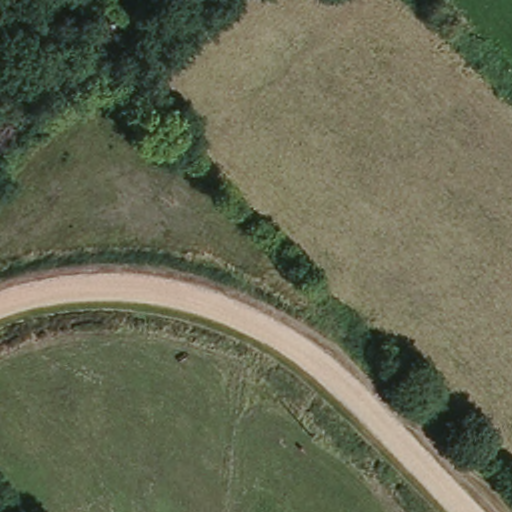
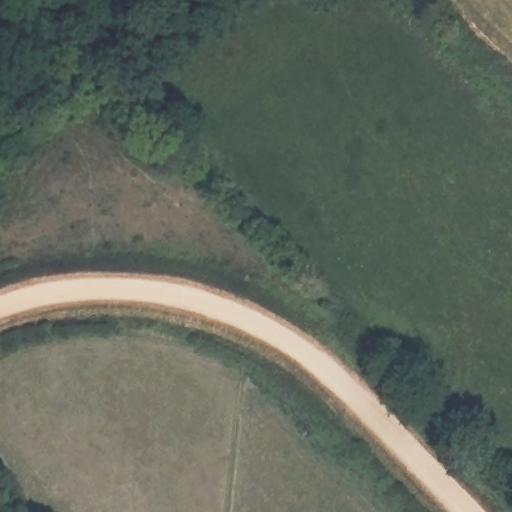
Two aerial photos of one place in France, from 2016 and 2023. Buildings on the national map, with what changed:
[]

